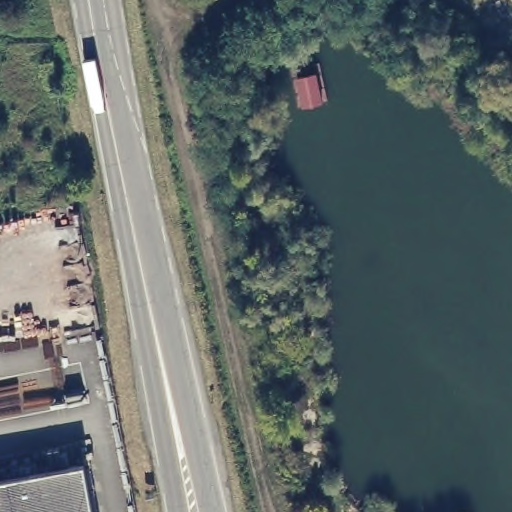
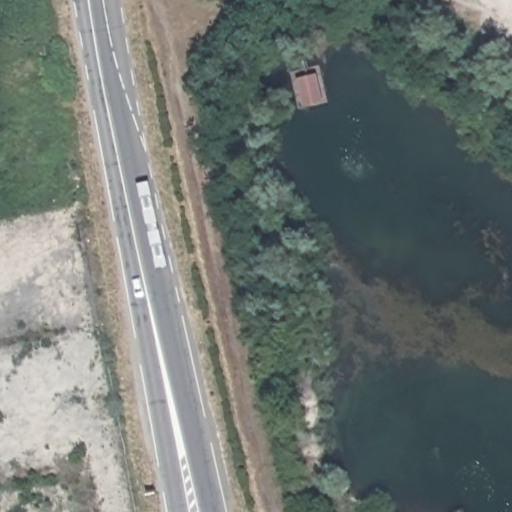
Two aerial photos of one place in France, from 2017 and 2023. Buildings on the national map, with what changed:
unchanged [(326,105),(305,109),(298,79),(319,74),(326,105)]
demolished [(83,461),(86,485),(85,485),(90,512),(0,512),(0,476),(83,461)]

